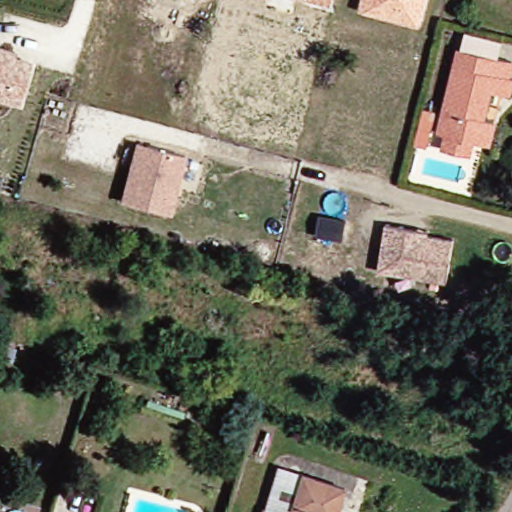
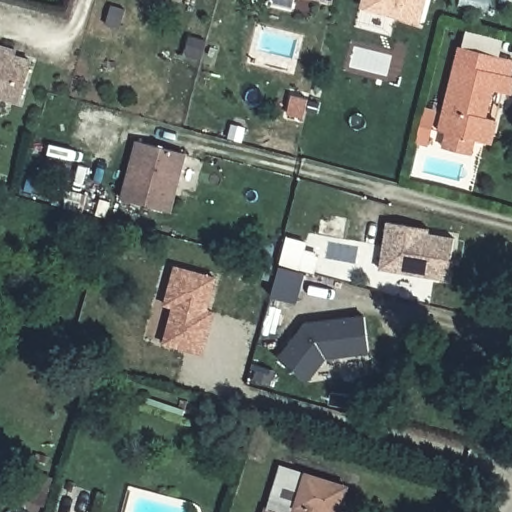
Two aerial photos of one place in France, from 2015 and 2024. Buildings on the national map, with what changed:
unchanged [(332,4),(316,0),(333,0),(332,4)]
unchanged [(420,24),(359,9),(361,0),(426,0),(420,24)]
unchanged [(14,54),(33,60),(20,105),(0,99),(0,45),(16,49),(14,54)]
unchanged [(444,133),(467,46),(512,57),(507,73),(512,75),(512,91),(504,90),(493,130),(491,145),(483,143),(480,155),(450,148),(452,135),(444,133)]
unchanged [(172,213),(120,200),(136,140),(186,153),(172,213)]
unchanged [(350,215),(346,235),(322,230),(325,210),(350,215)]
unchanged [(447,283),(378,272),(386,225),(402,228),(427,230),(427,237),(453,241),(447,283)]
new [(305,250),(322,255),(315,275),(303,272),(296,303),(271,297),(286,236),(307,242),(305,250)]
new [(209,308),(217,310),(204,355),(162,343),(172,307),(163,306),(174,265),(217,278),(209,308)]
new [(308,322),(362,316),(366,351),(322,356),(302,380),(277,355),(308,322)]
unchanged [(345,487),(337,512),(293,512),(304,474),(345,487)]
unchanged [(281,512),(262,512),(263,506),(281,512)]

